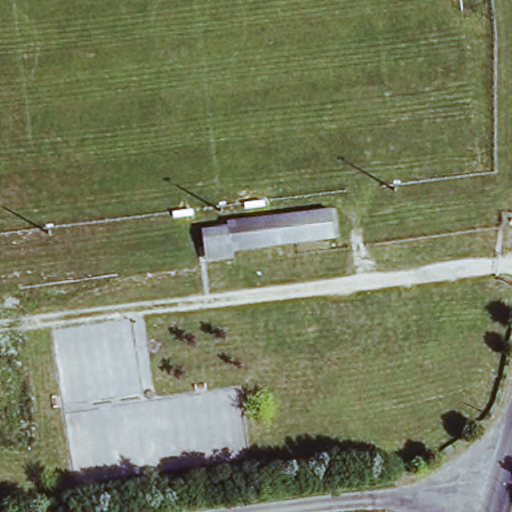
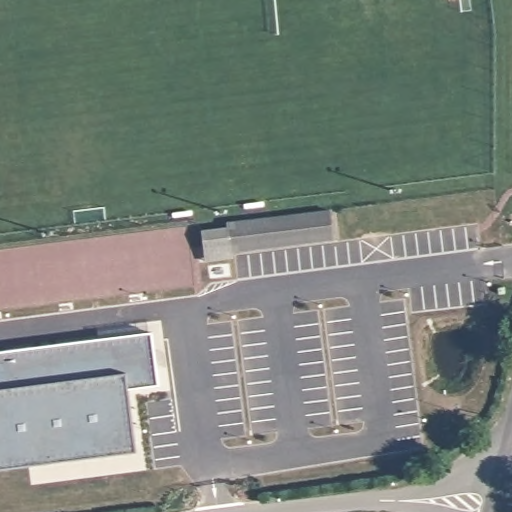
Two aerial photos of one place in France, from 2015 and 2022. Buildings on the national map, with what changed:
unchanged [(228,216),(330,204),(333,238),(230,246),(228,216)]
new [(160,387),(130,391),(137,452),(0,469),(0,352),(152,332),(160,387)]

